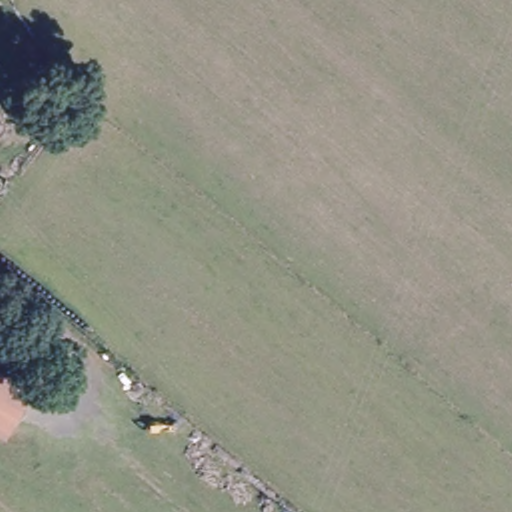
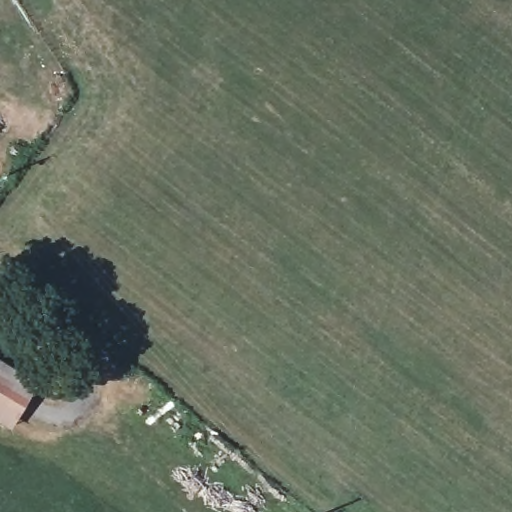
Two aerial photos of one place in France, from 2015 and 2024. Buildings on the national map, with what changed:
unchanged [(16,426),(0,418),(0,358),(41,382),(16,426)]

